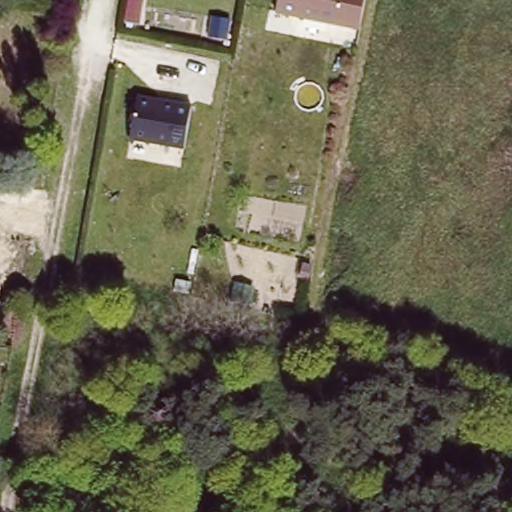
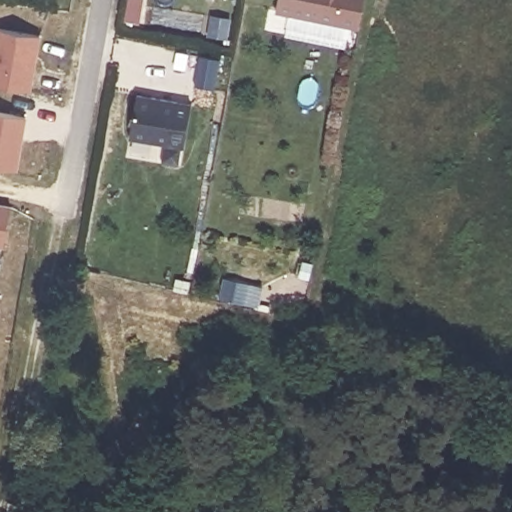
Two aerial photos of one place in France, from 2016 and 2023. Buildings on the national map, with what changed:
unchanged [(276,14),(278,0),(364,0),(359,28),(276,14)]
new [(41,36),(32,93),(0,87),(0,29),(41,36)]
unchanged [(192,103),(184,148),(128,138),(136,94),(192,103)]
new [(27,117),(19,172),(0,168),(0,113),(27,117)]
new [(11,205),(4,247),(0,246),(0,203),(11,205)]

